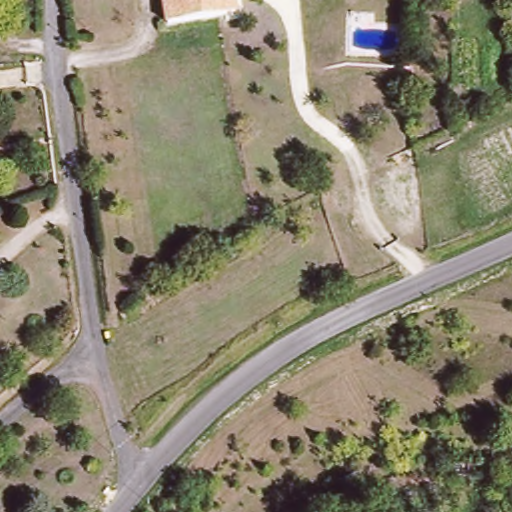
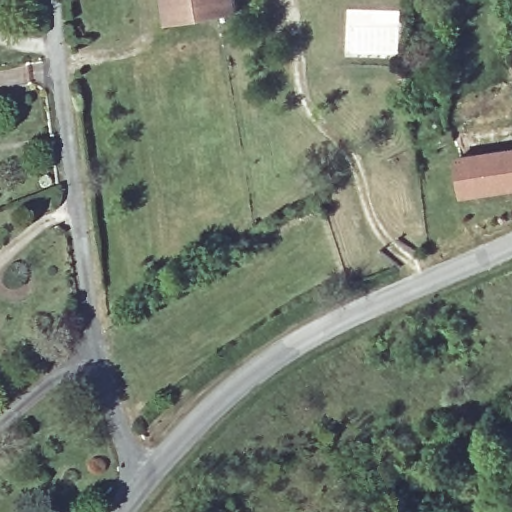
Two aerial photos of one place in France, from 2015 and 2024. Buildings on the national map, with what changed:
unchanged [(166,25),(162,0),(236,0),(239,14),(166,25)]
new [(462,160),(512,153),(512,190),(467,196),(462,160)]

